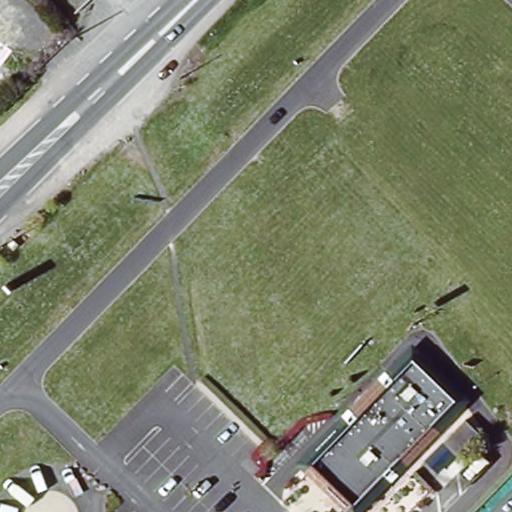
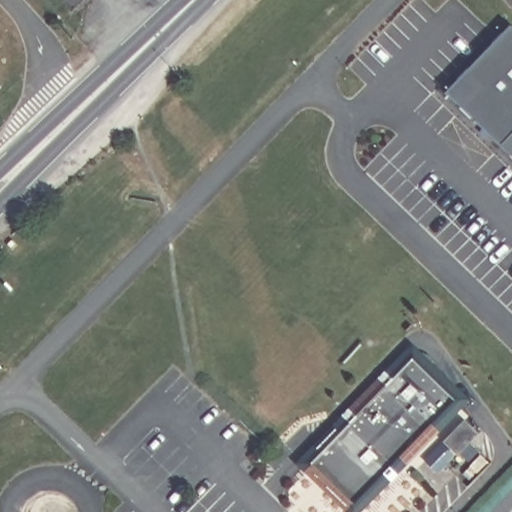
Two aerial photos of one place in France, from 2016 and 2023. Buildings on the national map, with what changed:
new [(510,28),(512,29),(512,163),(441,92),(510,28)]
unchanged [(357,510),(315,471),(420,357),(440,376),(449,369),(458,383),(453,389),(462,398),(357,510)]
unchanged [(487,428),(465,449),(450,436),(473,414),(487,428)]

